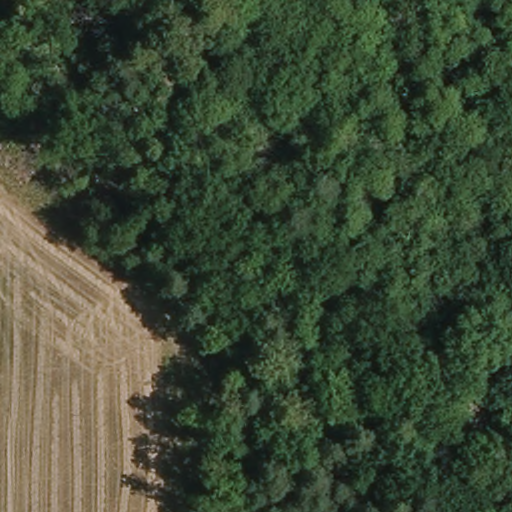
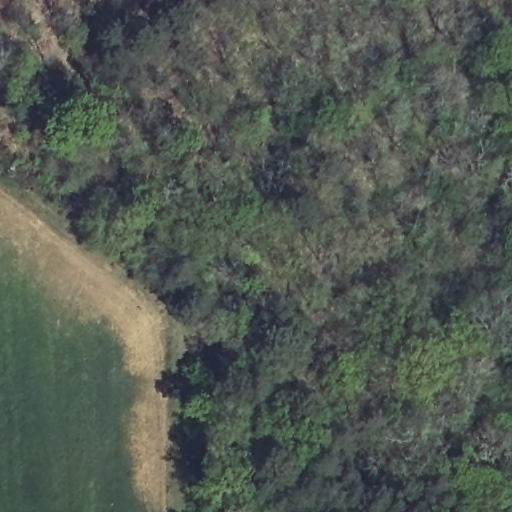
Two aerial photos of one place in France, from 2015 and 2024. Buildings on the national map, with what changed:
[]

